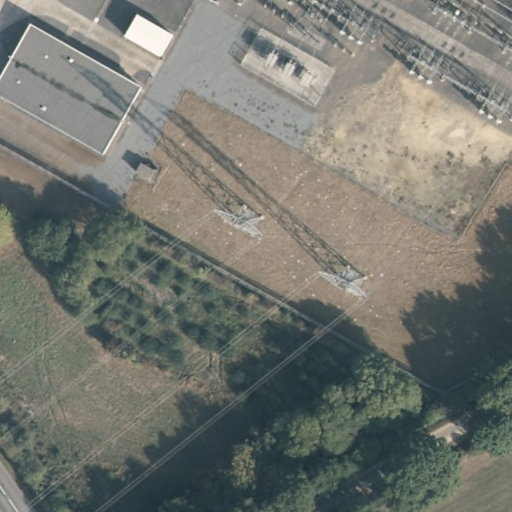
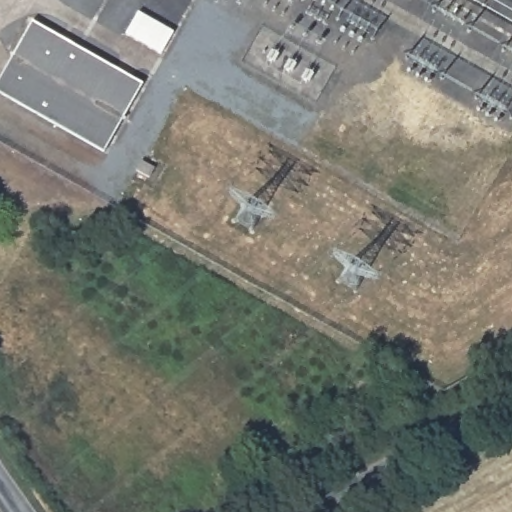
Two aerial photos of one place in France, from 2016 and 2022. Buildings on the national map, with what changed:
unchanged [(162,50),(127,30),(137,10),(171,31),(162,50)]
unchanged [(107,154),(0,97),(0,77),(30,20),(146,82),(107,154)]

